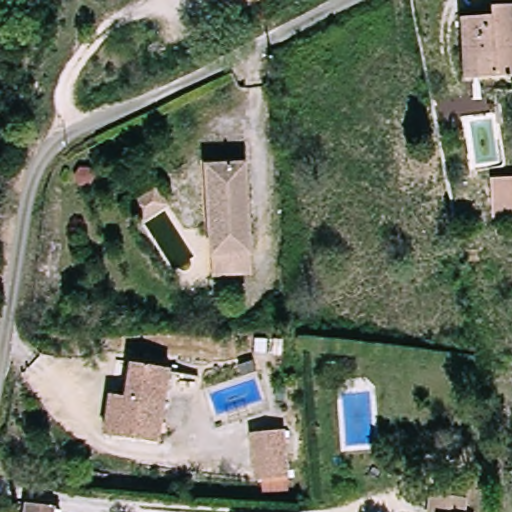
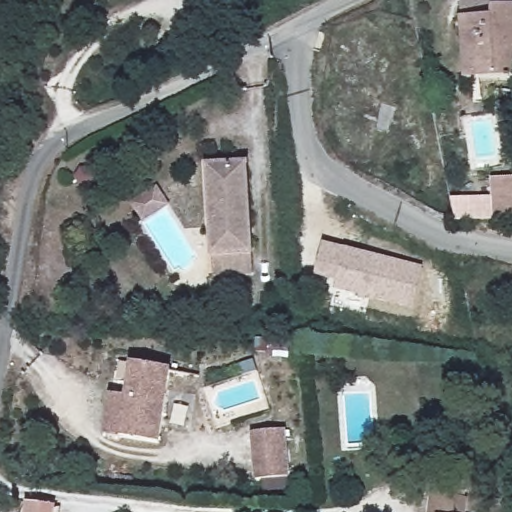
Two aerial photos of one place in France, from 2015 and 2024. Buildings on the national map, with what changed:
unchanged [(218,0),(242,0),(223,10),(218,0)]
unchanged [(504,82),(471,81),(472,62),(460,61),(462,17),(485,18),(485,7),(512,7),(512,69),(504,69),(504,82)]
unchanged [(215,277),(213,255),(206,167),(244,164),(253,254),(255,274),(215,277)]
unchanged [(512,211),(511,220),(490,219),(492,178),(512,181),(512,211)]
unchanged [(140,225),(128,204),(157,187),(167,209),(140,225)]
new [(413,310),(335,291),(337,282),(316,278),(324,243),(423,266),(418,287),(413,310)]
unchanged [(109,393),(123,395),(127,360),(165,365),(156,440),(118,434),(104,432),(109,393)]
unchanged [(257,440),(286,436),(290,484),(261,486),(257,440)]
unchanged [(425,497),(459,498),(458,512),(425,512),(425,497)]
unchanged [(52,506),(51,512),(23,512),(25,503),(52,506)]

